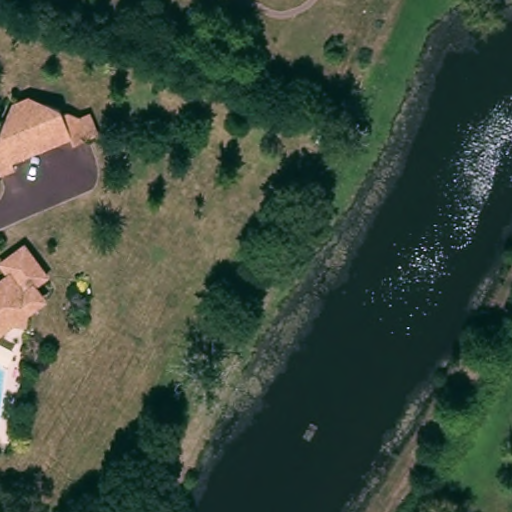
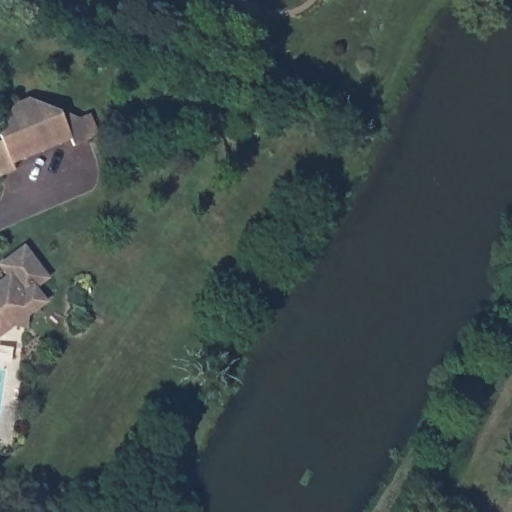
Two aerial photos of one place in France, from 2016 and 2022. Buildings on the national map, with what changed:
unchanged [(13,161),(16,168),(1,174),(0,172),(0,140),(2,138),(0,133),(13,102),(29,95),(61,108),(63,113),(68,111),(81,116),(81,117),(90,113),(98,133),(89,137),(74,143),(72,137),(13,161)]
unchanged [(26,249),(48,279),(35,289),(43,298),(41,307),(27,317),(26,328),(8,325),(7,332),(0,337),(0,286),(10,278),(2,267),(26,249)]

